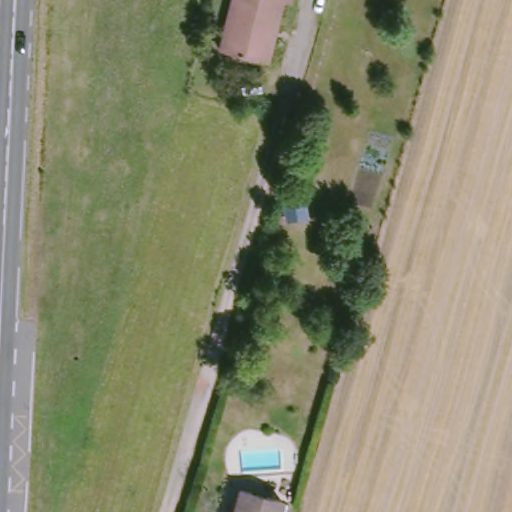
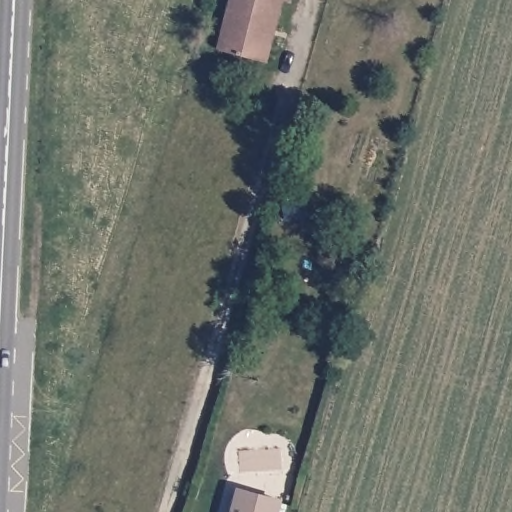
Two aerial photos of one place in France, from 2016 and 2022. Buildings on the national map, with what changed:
unchanged [(230,0),(284,0),(271,61),(216,47),(230,0)]
unchanged [(289,512),(234,512),(239,490),(291,504),(289,512)]

